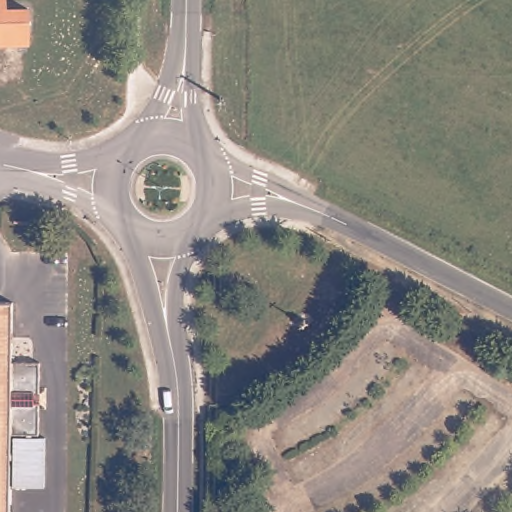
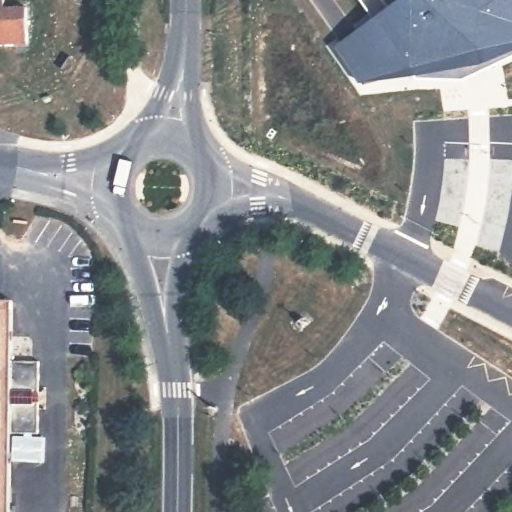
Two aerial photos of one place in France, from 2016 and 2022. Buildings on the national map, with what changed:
unchanged [(26,5),(27,42),(0,42),(0,0),(6,0),(6,6),(26,5)]
new [(466,81),(418,77),(363,85),(339,46),(378,18),(364,0),(512,0),(512,59),(466,81)]
unchanged [(13,353),(39,353),(38,427),(12,426),(10,512),(0,512),(0,295),(13,296),(13,353)]

